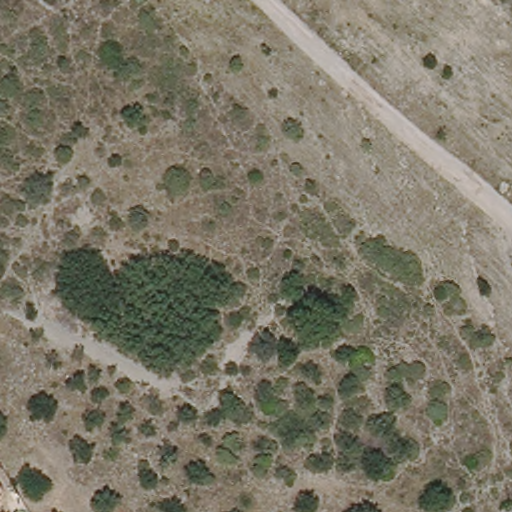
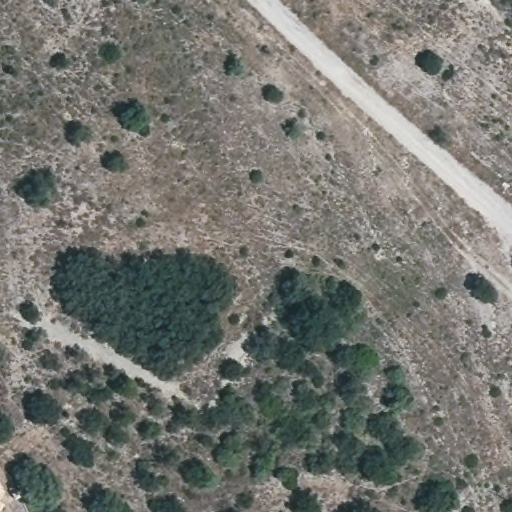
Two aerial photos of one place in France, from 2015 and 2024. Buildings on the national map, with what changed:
unchanged [(9,487),(0,499),(0,473),(9,487)]

